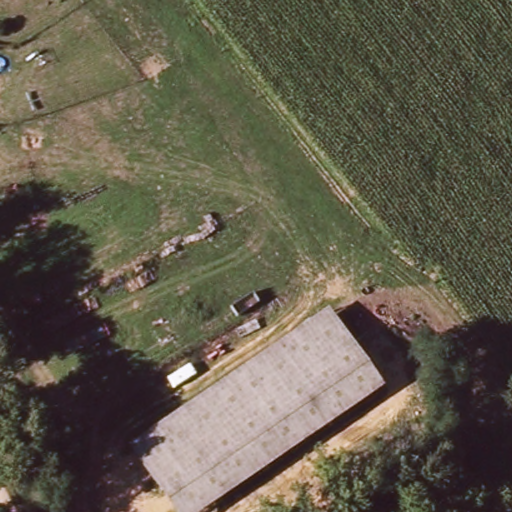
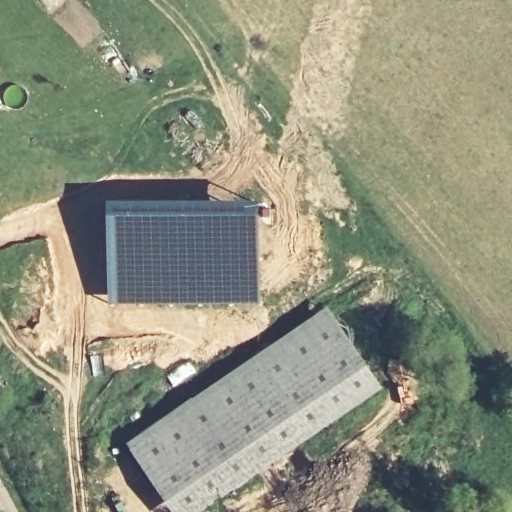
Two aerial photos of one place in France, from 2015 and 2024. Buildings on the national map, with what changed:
new [(189,203),(262,207),(262,304),(183,304),(108,306),(108,203),(189,203)]
unchanged [(384,386),(203,512),(181,512),(140,454),(133,444),(330,307),(385,386),(384,386)]

